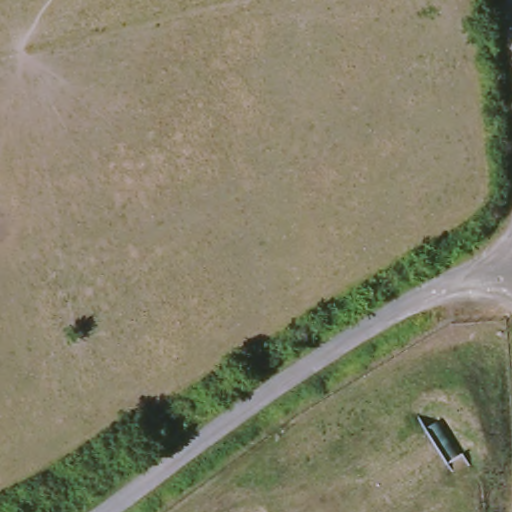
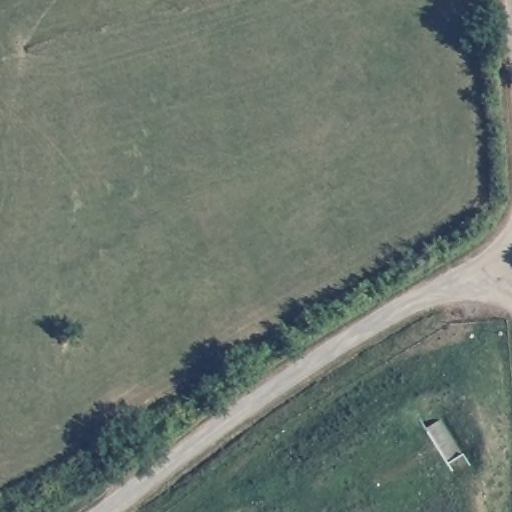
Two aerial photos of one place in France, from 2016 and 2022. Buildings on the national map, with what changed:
unchanged [(462,456),(448,466),(424,431),(438,423),(462,456)]

